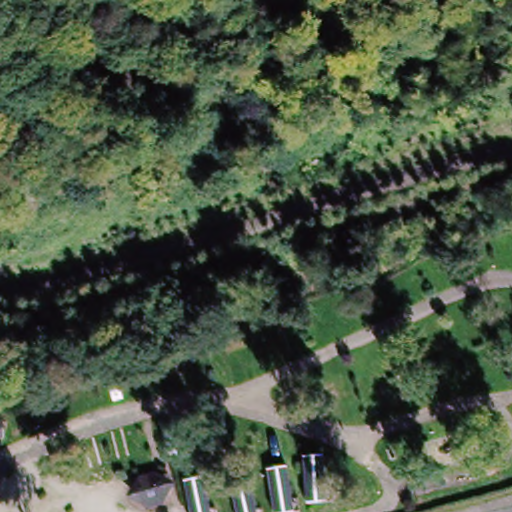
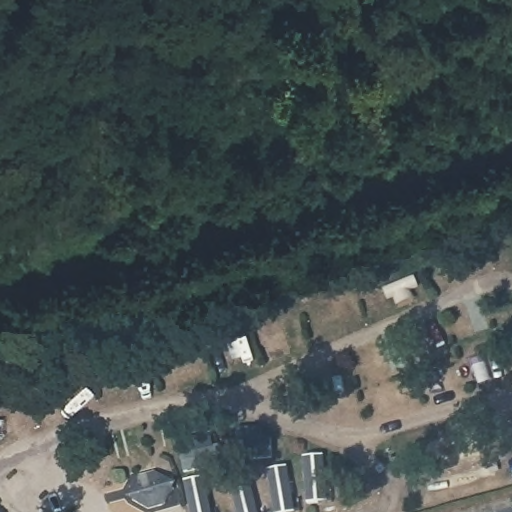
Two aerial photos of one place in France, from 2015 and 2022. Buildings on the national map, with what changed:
unchanged [(3,419),(3,437),(0,437),(0,419),(3,419)]
unchanged [(302,457),(325,455),(327,502),(305,504),(302,457)]
unchanged [(266,470),(288,466),(294,512),(272,512),(266,470)]
unchanged [(128,493),(137,478),(152,474),(167,482),(177,486),(171,495),(162,509),(152,512),(144,512),(132,506),(123,501),(128,493)]
unchanged [(203,476),(211,512),(189,512),(182,480),(203,476)]
unchanged [(229,483),(250,478),(258,512),(236,512),(229,483)]

